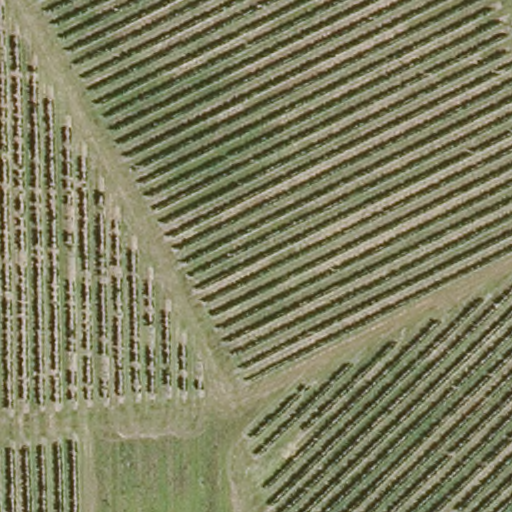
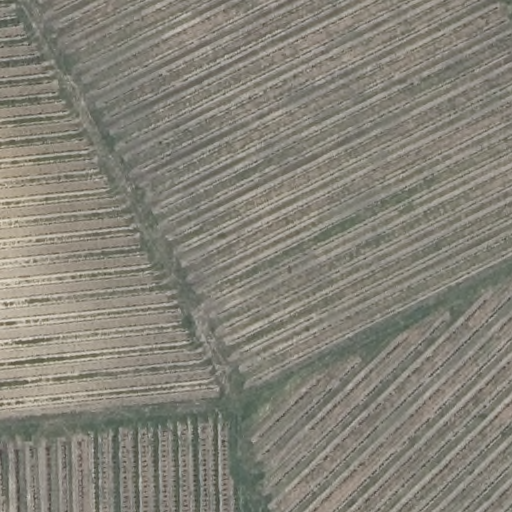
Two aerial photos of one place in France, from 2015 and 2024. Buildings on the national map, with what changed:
[]

